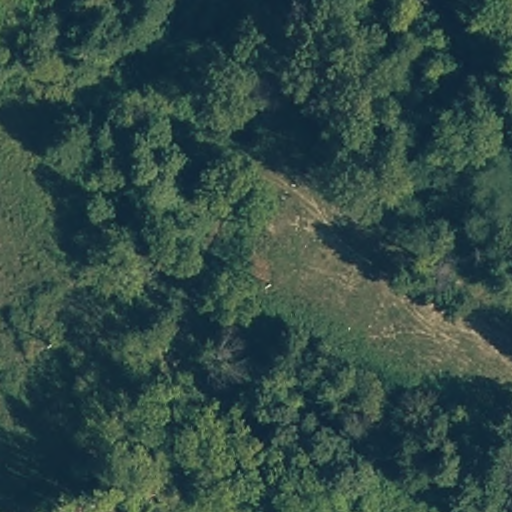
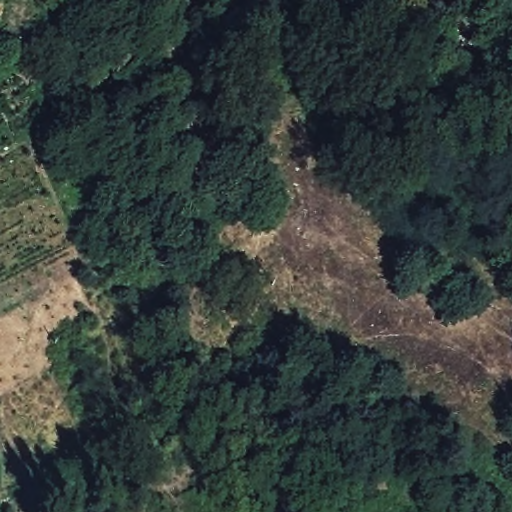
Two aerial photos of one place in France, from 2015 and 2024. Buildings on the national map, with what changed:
[]

